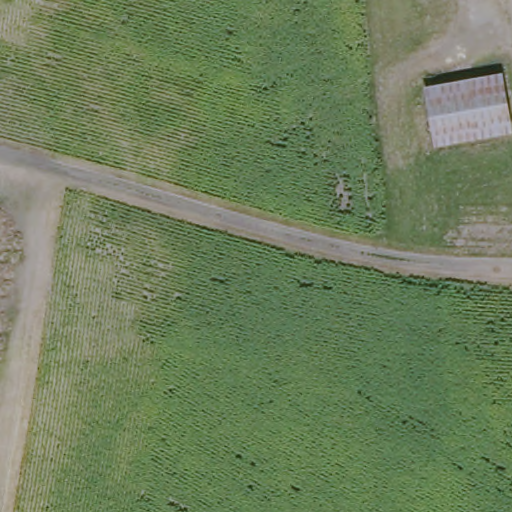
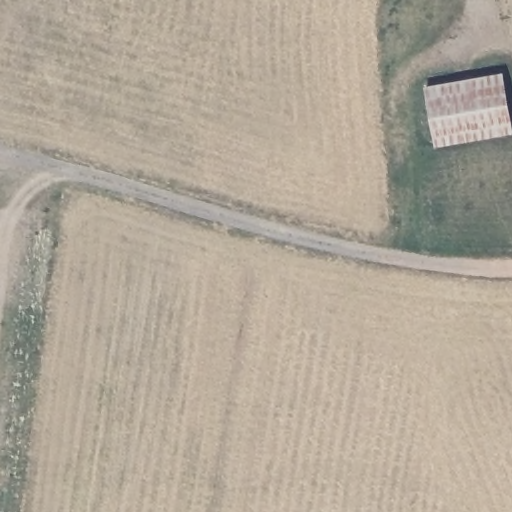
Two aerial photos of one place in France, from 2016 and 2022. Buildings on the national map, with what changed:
unchanged [(437,148),(429,88),(507,73),(512,99),(512,136),(437,148)]

